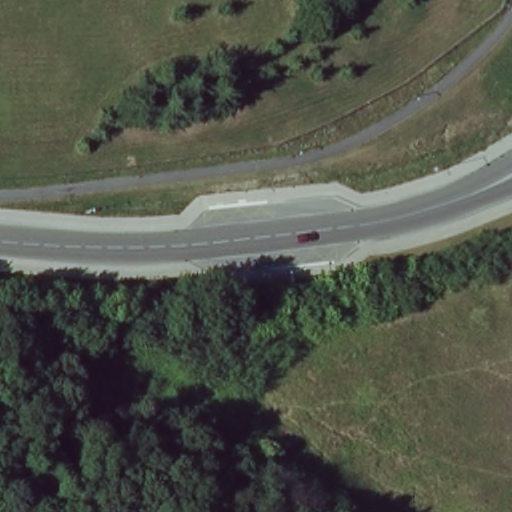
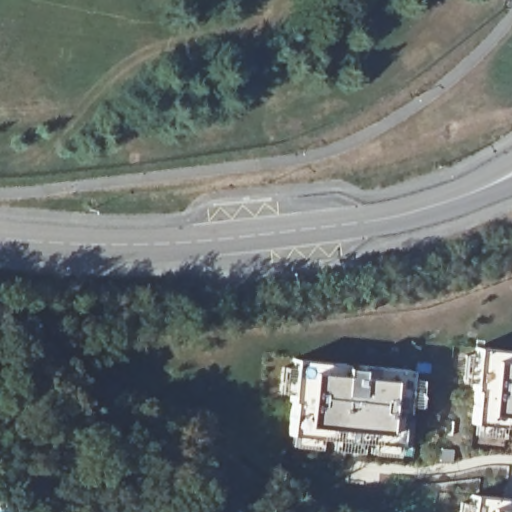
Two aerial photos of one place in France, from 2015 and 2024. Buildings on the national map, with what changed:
new [(512,426),(469,422),(472,390),(467,389),(472,347),(512,351),(512,426)]
new [(404,367),(397,442),(286,434),(290,401),(287,400),(291,357),(404,367)]
new [(512,512),(464,512),(466,495),(512,499),(512,512)]

